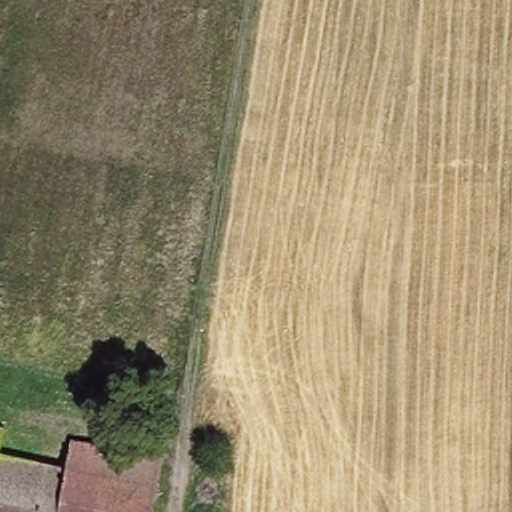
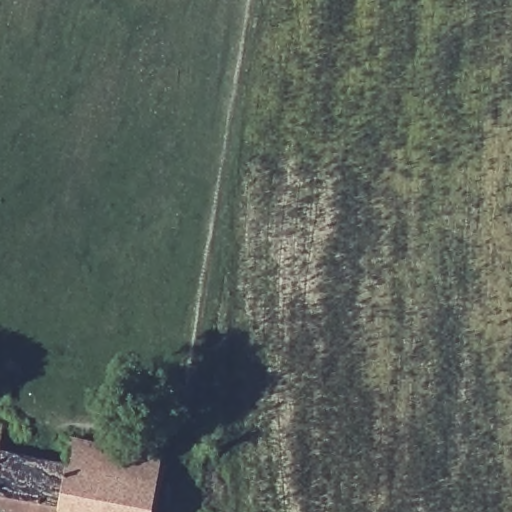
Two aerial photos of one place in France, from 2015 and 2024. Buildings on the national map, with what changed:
unchanged [(0,428),(1,428),(0,433),(0,428)]
unchanged [(68,444),(159,461),(149,512),(0,512),(0,456),(62,469),(68,444)]

